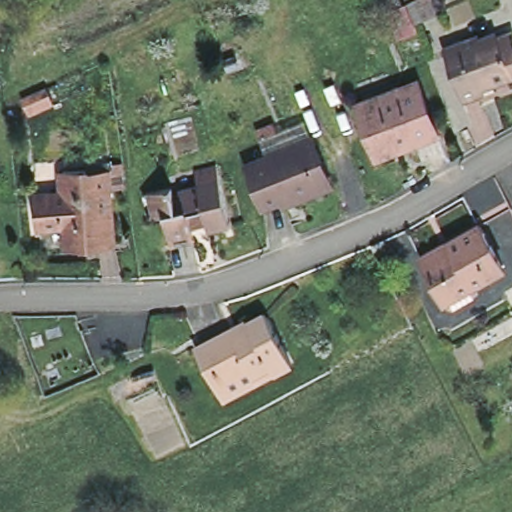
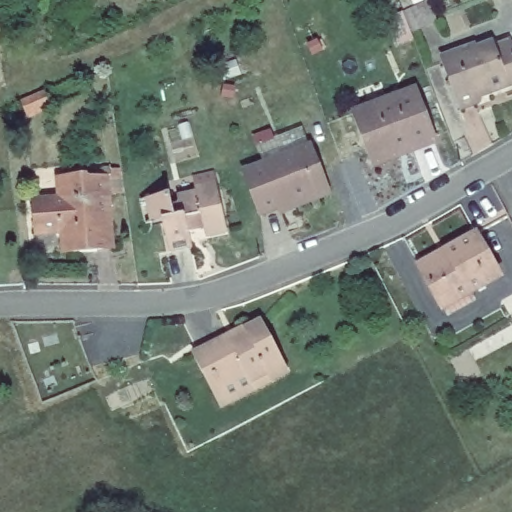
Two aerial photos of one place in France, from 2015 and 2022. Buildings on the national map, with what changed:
unchanged [(473,43),(478,56),(495,50),(492,41),(510,34),(512,41),(512,58),(452,81),(445,60),(453,57),(451,51),(473,43)]
unchanged [(508,82),(480,92),(482,99),(462,106),(452,81),(512,58),(512,67),(510,67),(508,82)]
unchanged [(416,85),(436,140),(375,163),(354,108),(416,85)]
unchanged [(46,89),(51,102),(29,112),(23,99),(46,89)]
unchanged [(265,160),(255,132),(275,125),(278,134),(303,125),(332,194),(277,216),(272,206),(258,217),(239,168),(265,160)]
unchanged [(65,198),(63,177),(87,175),(87,178),(100,177),(102,194),(107,194),(112,249),(65,253),(63,234),(36,236),(32,201),(65,198)]
unchanged [(171,193),(172,198),(196,193),(193,180),(215,175),(230,235),(192,243),(193,248),(170,253),(163,221),(152,224),(147,199),(171,193)]
unchanged [(501,274),(444,306),(420,264),(476,231),(501,274)]
unchanged [(230,333),(233,340),(248,332),(245,328),(263,319),(288,367),(220,403),(193,352),(230,333)]

